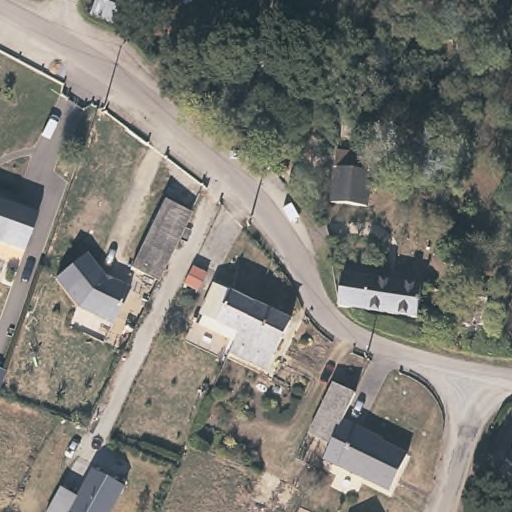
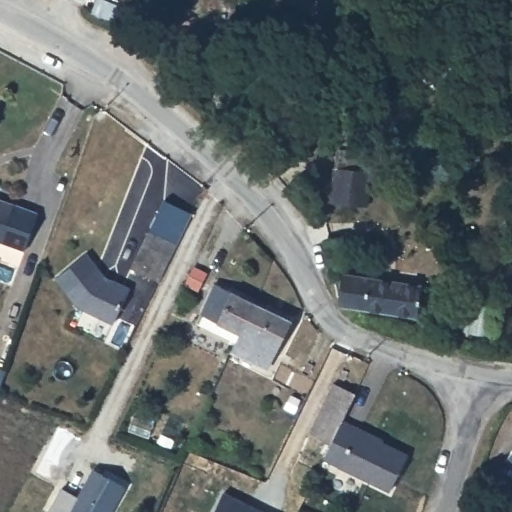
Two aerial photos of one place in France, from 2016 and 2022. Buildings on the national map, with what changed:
unchanged [(454,31),(459,34),(461,45),(451,44),(447,45),(446,35),(450,31),(454,31)]
unchanged [(374,157),(371,207),(338,205),(340,155),(374,157)]
unchanged [(155,222),(165,202),(192,216),(177,246),(150,232),(155,222)]
unchanged [(13,252),(0,248),(0,206),(25,215),(13,252)]
unchanged [(177,246),(159,282),(131,268),(150,232),(177,246)]
unchanged [(123,286),(130,291),(114,324),(105,320),(80,307),(57,278),(86,255),(104,277),(123,286)]
unchanged [(422,287),(418,317),(334,303),(337,290),(340,275),(422,287)]
unchanged [(220,339),(224,329),(199,317),(212,288),(228,296),(230,291),(252,301),(250,307),(233,345),(220,339)]
unchanged [(503,305),(499,333),(455,328),(459,297),(503,305)]
unchanged [(290,325),(268,376),(227,357),(233,345),(250,307),(290,325)]
unchanged [(354,386),(340,412),(331,432),(308,421),(331,373),(354,386)]
unchanged [(0,386),(0,375),(4,376),(0,386)]
unchanged [(331,432),(340,412),(373,428),(375,435),(378,436),(379,433),(379,434),(405,447),(388,482),(361,470),(322,450),(331,432)]
unchanged [(112,512),(47,512),(61,487),(79,497),(93,470),(125,487),(112,512)]
new [(265,512),(213,512),(224,491),(265,512)]

